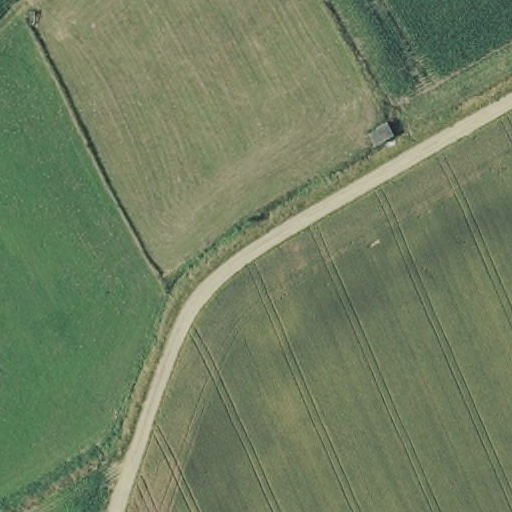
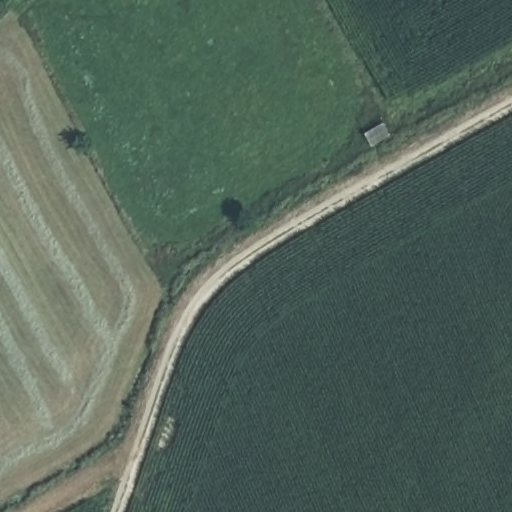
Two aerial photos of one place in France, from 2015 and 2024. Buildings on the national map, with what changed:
unchanged [(394,135),(370,149),(359,132),(383,120),(394,135)]

